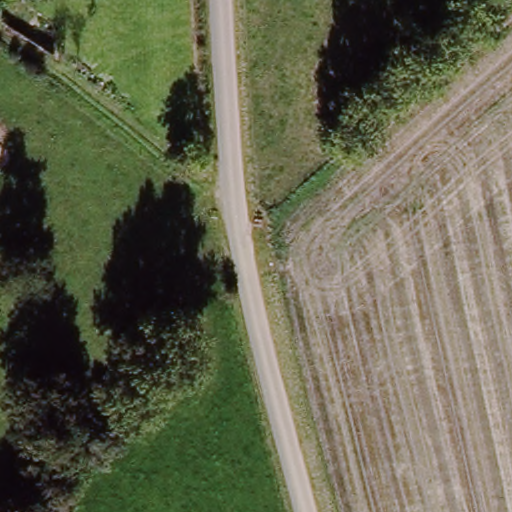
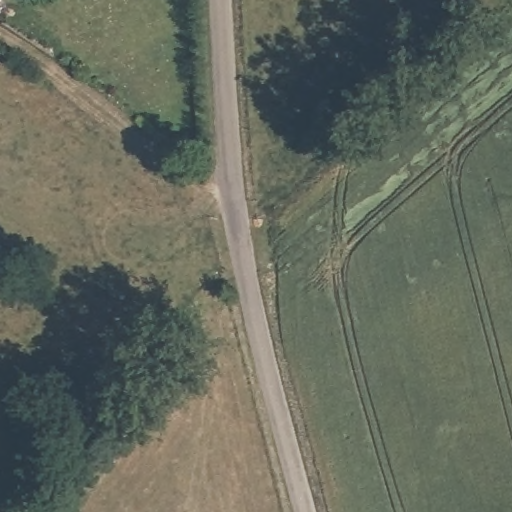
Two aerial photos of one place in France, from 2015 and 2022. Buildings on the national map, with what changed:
unchanged [(28,7),(68,37),(53,57),(8,22),(21,3),(28,7)]

